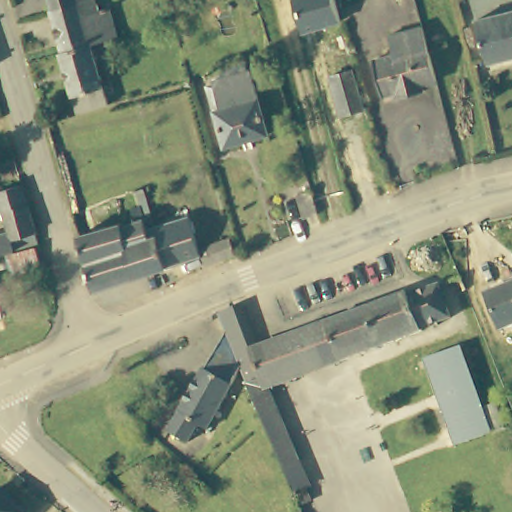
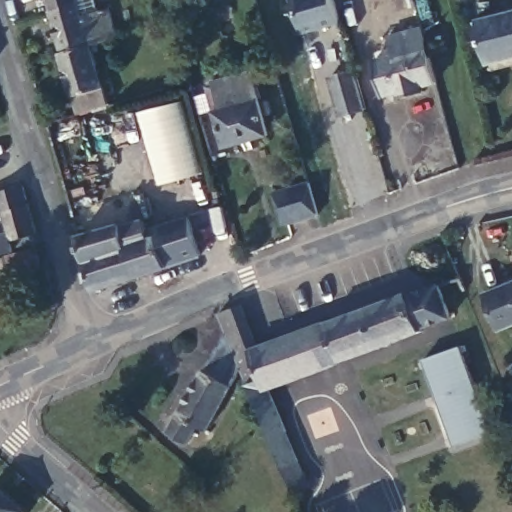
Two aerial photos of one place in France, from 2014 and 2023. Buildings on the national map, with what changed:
unchanged [(58,55),(47,12),(44,0),(91,0),(95,13),(105,10),(115,39),(89,46),(58,55)]
new [(341,21),(303,32),(295,0),(336,0),(341,21)]
unchanged [(512,57),(483,65),(471,22),(512,12),(512,57)]
unchanged [(418,82),(420,89),(398,94),(396,89),(382,92),(373,58),(391,54),(386,36),(423,26),(437,78),(418,82)]
unchanged [(106,107),(75,116),(56,55),(58,55),(89,46),(106,107)]
unchanged [(365,108),(339,115),(330,76),(355,70),(365,108)]
unchanged [(209,89),(247,78),(256,105),(217,117),(209,89)]
new [(157,185),(136,113),(185,99),(205,173),(157,185)]
unchanged [(256,105),(267,140),(223,152),(212,118),(217,117),(256,105)]
new [(284,226),(272,192),(309,180),(320,214),(284,226)]
unchanged [(17,252),(0,257),(0,237),(10,235),(4,213),(0,214),(0,190),(20,184),(27,206),(36,236),(39,246),(17,252)]
demolished [(306,219),(300,194),(315,190),(321,215),(306,219)]
unchanged [(124,223),(135,220),(126,193),(140,191),(147,216),(152,234),(160,231),(170,263),(94,287),(79,232),(123,220),(124,223)]
unchanged [(160,231),(152,234),(150,227),(191,216),(202,256),(170,263),(160,231)]
unchanged [(36,249),(42,268),(15,276),(10,257),(36,249)]
unchanged [(481,294),(512,280),(512,323),(497,330),(481,294)]
unchanged [(256,352),(289,340),(363,313),(405,297),(407,301),(438,290),(450,322),(448,322),(427,330),(420,333),(420,334),(413,337),(345,361),(267,390),(265,391),(271,406),(254,413),(244,390),(238,374),(237,371),(224,337),(217,319),(240,311),(256,352)]
unchanged [(1,306),(0,306),(0,300),(1,306)]
unchanged [(203,434),(195,429),(183,448),(181,447),(166,438),(201,374),(203,375),(224,337),(237,371),(238,374),(203,434)]
unchanged [(498,431),(460,444),(427,359),(466,346),(498,431)]
unchanged [(271,406),(305,489),(287,495),(278,472),(254,413),(271,406)]
unchanged [(0,512),(0,491),(23,512),(0,512)]

